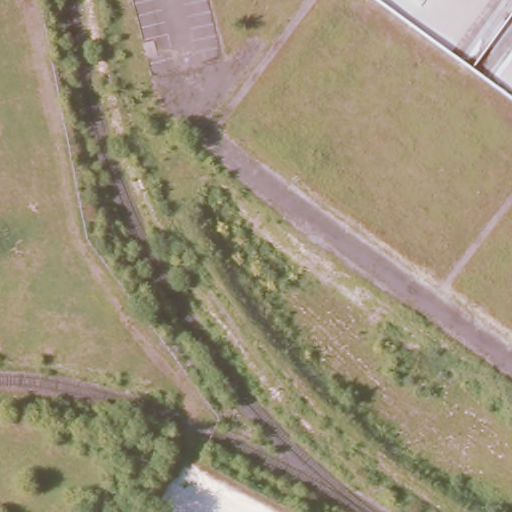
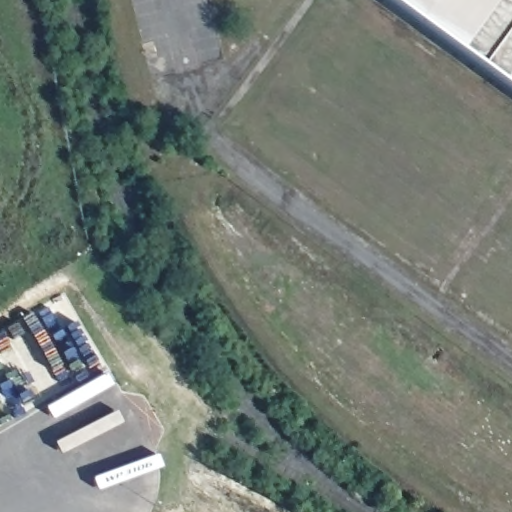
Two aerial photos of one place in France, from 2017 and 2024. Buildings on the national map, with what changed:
unchanged [(380,0),(512,0),(512,96),(380,0)]

